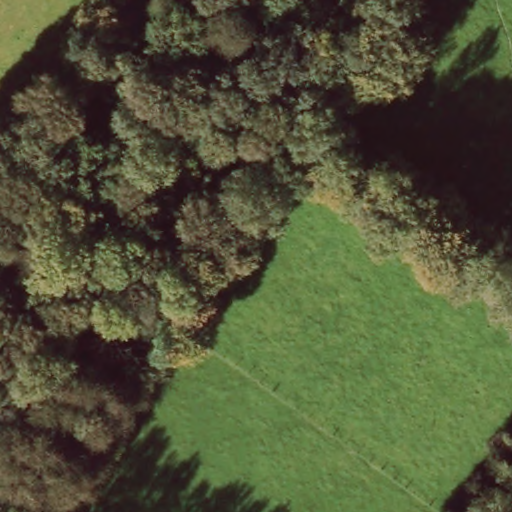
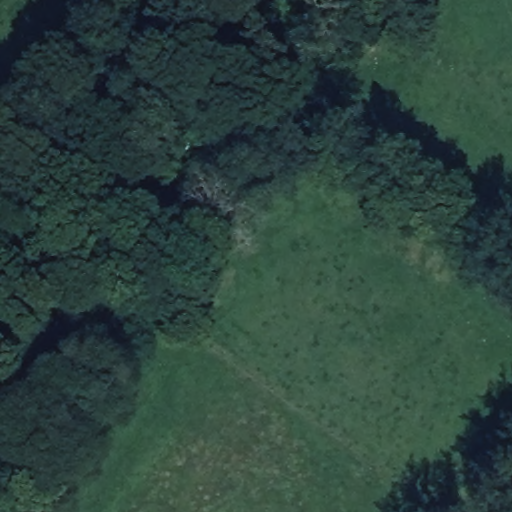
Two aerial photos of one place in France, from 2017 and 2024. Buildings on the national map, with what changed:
[]

